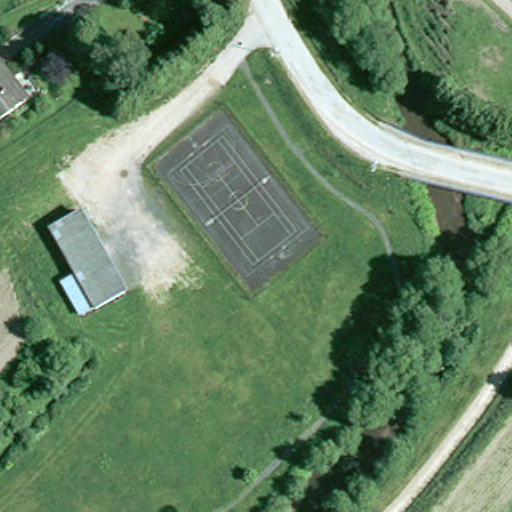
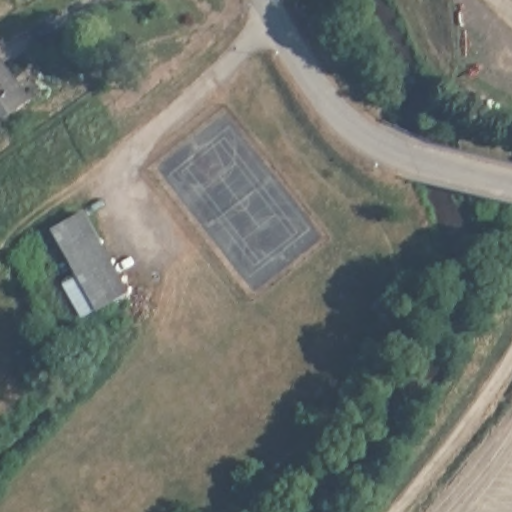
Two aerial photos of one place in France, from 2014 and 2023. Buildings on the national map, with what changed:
unchanged [(0,126),(0,68),(28,103),(0,126)]
unchanged [(65,281),(66,280),(77,275),(56,230),(55,229),(85,214),(125,297),(82,317),(65,281)]

